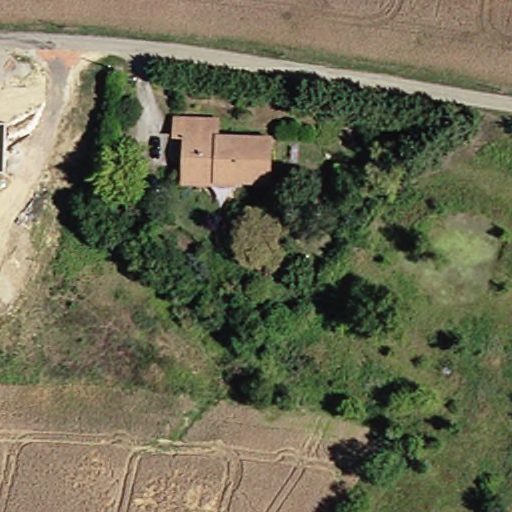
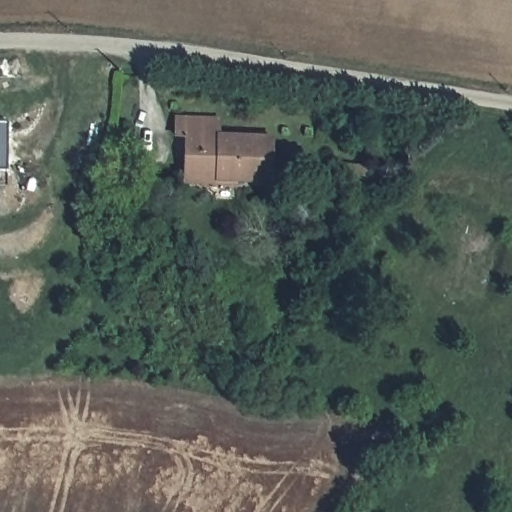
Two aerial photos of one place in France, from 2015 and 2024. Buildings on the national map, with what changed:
unchanged [(181,189),(181,179),(182,140),(170,140),(171,117),(217,118),(216,136),(269,139),(267,186),(213,182),(213,191),(181,189)]
unchanged [(6,122),(7,172),(0,172),(0,123),(6,122)]
unchanged [(362,165),(360,185),(330,183),(332,164),(362,165)]

